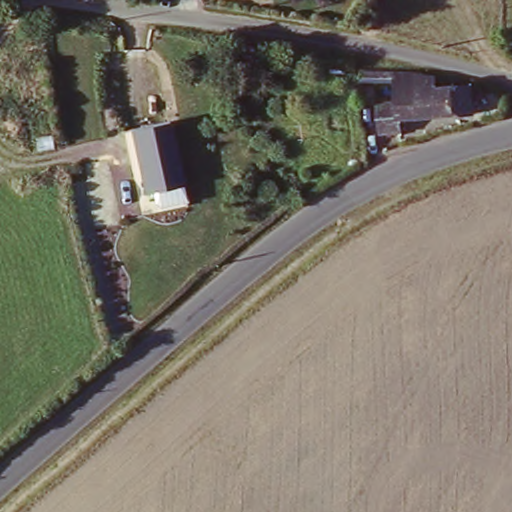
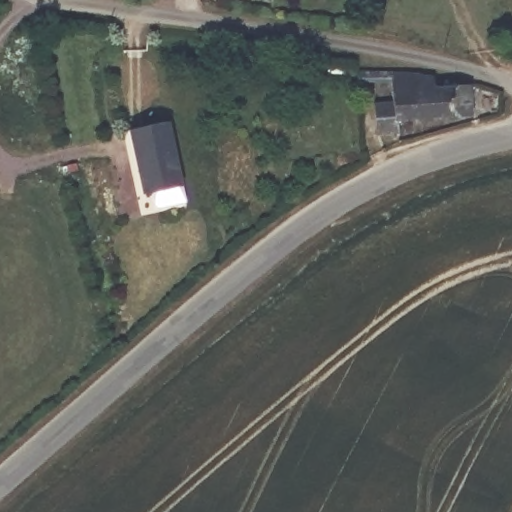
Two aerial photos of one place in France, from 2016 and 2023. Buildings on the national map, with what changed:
unchanged [(423,81),(434,83),(435,94),(471,93),(469,120),(395,120),(396,139),(373,139),(374,106),(393,107),(392,87),(358,83),(360,72),(392,76),(423,80),(423,81)]
unchanged [(135,129),(173,125),(180,190),(142,194),(135,129)]

